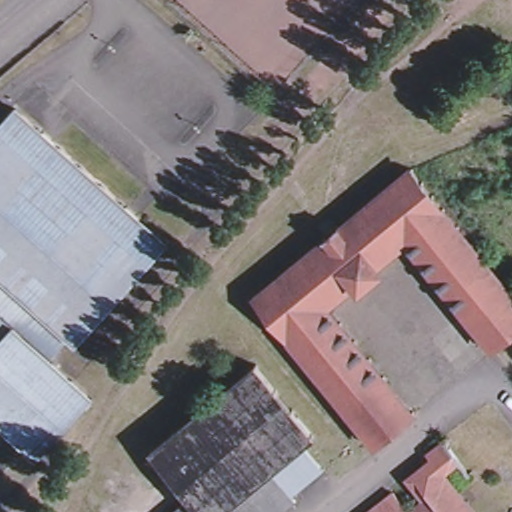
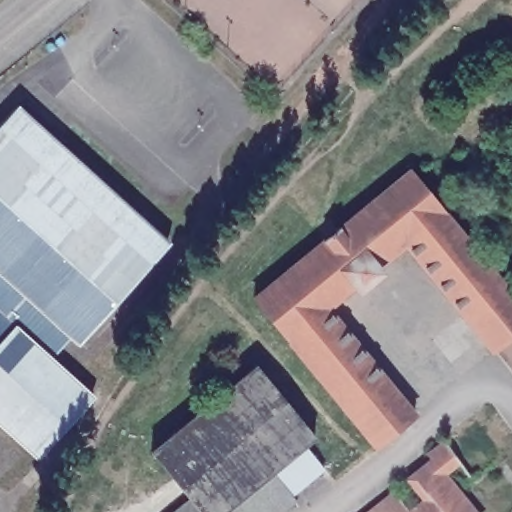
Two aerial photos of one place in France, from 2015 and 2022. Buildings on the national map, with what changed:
unchanged [(37,131),(58,150),(80,170),(102,189),(122,209),(143,228),(165,246),(82,341),(74,335),(50,362),(54,366),(92,401),(40,458),(22,441),(0,421),(0,128),(15,112),(37,131)]
unchanged [(326,308),(288,339),(255,297),(366,209),(412,172),(444,212),(405,244),(326,308)]
unchanged [(405,244),(444,212),(502,283),(462,315),(405,244)]
unchanged [(502,283),(512,296),(512,337),(493,352),(462,315),(502,283)]
unchanged [(383,379),(345,410),(288,339),(326,308),(383,379)]
unchanged [(255,365),(312,435),(301,445),(218,512),(199,512),(188,498),(150,450),(255,365)]
unchanged [(414,415),(375,446),(345,410),(383,379),(414,415)]
unchanged [(481,512),(409,512),(410,511),(426,499),(410,478),(435,459),(430,452),(448,439),(460,460),(443,472),(450,481),(469,507),(473,503),(481,512)]
unchanged [(321,469),(292,493),(297,501),(284,512),(218,512),(301,445),(321,469)]
unchanged [(410,511),(409,512),(368,512),(394,492),(410,511)]
unchanged [(199,512),(172,512),(188,498),(199,512)]

